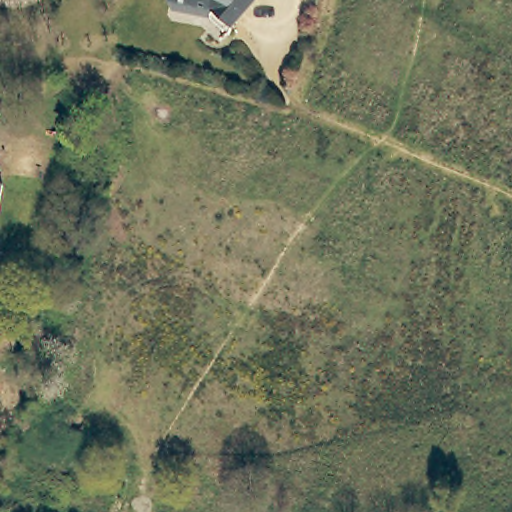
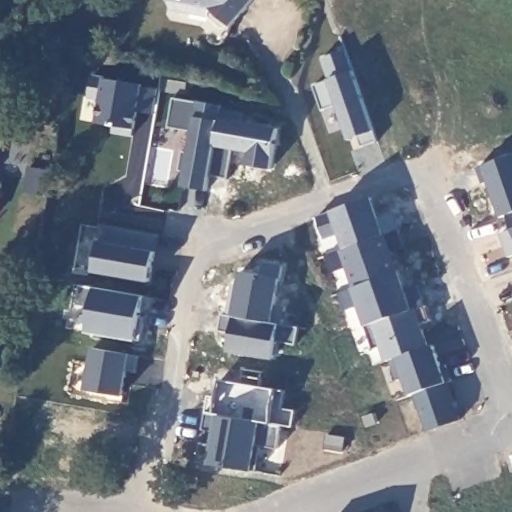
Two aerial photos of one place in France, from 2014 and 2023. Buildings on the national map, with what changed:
unchanged [(203,18),(171,12),(170,6),(164,0),(250,0),(230,24),(228,22),(220,29),(203,18)]
new [(344,125),(338,108),(323,114),(314,89),(331,83),(323,62),(347,53),(379,144),(363,151),(359,140),(350,143),(344,125)]
new [(141,85),(141,87),(159,90),(155,115),(136,111),(132,136),(112,133),(113,126),(96,123),(100,100),(87,97),(91,76),(141,85)]
new [(180,174),(184,154),(189,155),(193,135),(170,130),(169,131),(174,101),(198,105),(199,104),(200,105),(222,109),(222,108),(223,108),(222,113),(211,178),(209,191),(208,194),(184,190),(186,175),(180,174)]
new [(222,113),(244,116),(242,126),(279,132),(272,174),(271,174),(271,173),(249,169),(248,169),(251,155),(235,152),(229,182),(211,178),(222,113)]
new [(512,217),(511,217),(502,221),(489,185),(484,186),(479,170),(512,159),(512,217)]
unchanged [(2,185),(0,192),(0,185),(2,185)]
new [(368,202),(375,223),(394,216),(400,233),(347,251),(341,235),(326,241),(318,218),(368,202)]
new [(512,217),(512,220),(511,217),(512,217)]
new [(101,230),(159,239),(151,284),(94,274),(101,230)]
new [(347,251),(400,233),(406,249),(392,254),(400,275),(356,291),(348,269),(333,275),(327,258),(347,251)]
new [(512,259),(510,260),(502,237),(512,233),(512,259)]
new [(232,294),(238,295),(242,274),(262,277),(264,265),(284,268),(277,307),(287,309),(284,327),(229,317),(232,294)]
new [(356,291),(400,275),(407,296),(420,291),(426,308),(369,328),(361,307),(346,313),(340,296),(356,291)]
new [(80,287),(145,298),(140,325),(145,326),(142,343),(87,334),(92,309),(76,307),(80,287)]
new [(369,328),(426,308),(431,323),(421,327),(429,350),(388,364),(383,349),(374,352),(367,329),(369,328)]
new [(223,316),(229,317),(284,327),(301,330),(297,348),(278,344),(275,361),(231,353),(234,336),(220,334),(223,316)]
new [(435,348),(442,369),(447,367),(453,384),(448,386),(415,397),(411,398),(405,381),(398,383),(391,363),(435,348)]
new [(93,350),(139,358),(137,375),(127,373),(122,398),(86,392),(93,350)]
new [(448,386),(461,423),(428,434),(415,397),(448,386)]
new [(252,474),(197,464),(201,444),(213,447),(215,434),(203,432),(206,415),(283,428),(279,452),(262,449),(258,474),(252,474)]

